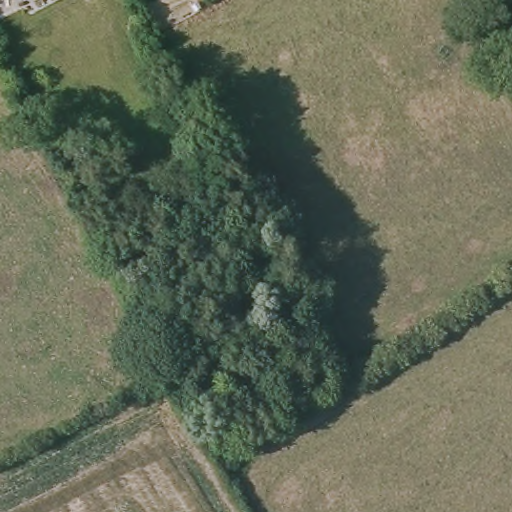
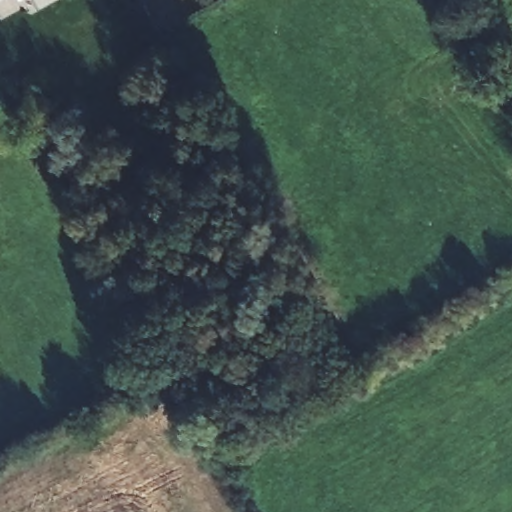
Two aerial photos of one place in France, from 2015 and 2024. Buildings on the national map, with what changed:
unchanged [(20,11),(16,2),(0,9),(0,0),(42,0),(20,11)]
unchanged [(64,3),(62,0),(70,0),(64,3)]

